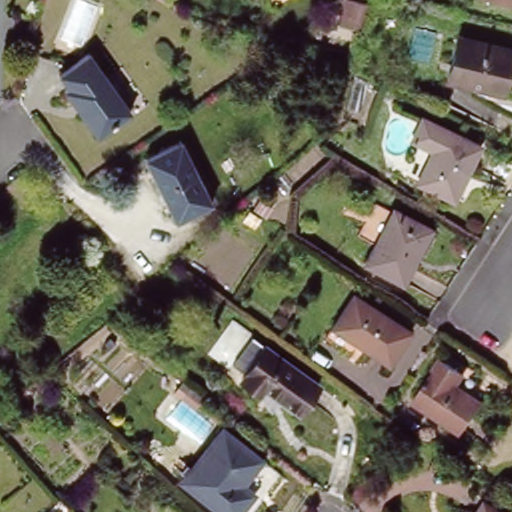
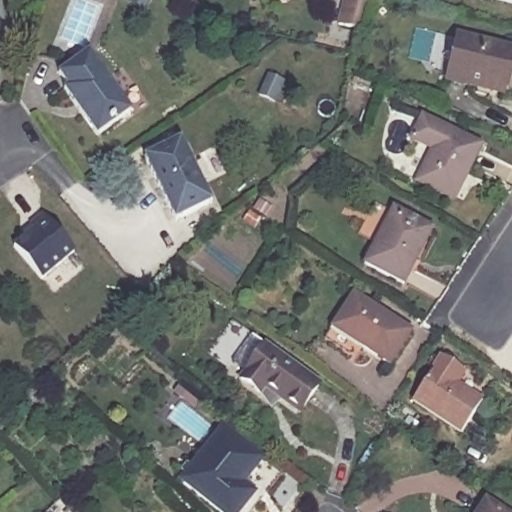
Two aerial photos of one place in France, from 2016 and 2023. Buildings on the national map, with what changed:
unchanged [(477,0),(512,0),(512,8),(477,0)]
unchanged [(348,29),(341,27),(345,1),(354,2),(367,5),(361,32),(348,29)]
unchanged [(503,90),(448,77),(458,34),(512,48),(512,56),(503,90)]
unchanged [(130,105),(97,130),(63,85),(67,82),(58,69),(87,47),(130,105)]
unchanged [(478,151),(454,200),(418,182),(433,153),(413,144),(423,126),(478,151)]
unchanged [(179,135),(212,196),(177,214),(144,154),(179,135)]
unchanged [(430,230),(418,251),(424,252),(404,288),(364,265),(392,211),(430,230)]
new [(13,246),(33,228),(28,224),(41,214),(75,251),(42,281),(13,246)]
unchanged [(408,335),(394,360),(368,343),(360,352),(330,333),(352,300),(408,335)]
unchanged [(321,383),(301,418),(266,396),(260,401),(241,388),(249,375),(230,363),(250,336),(321,383)]
unchanged [(482,403),(462,433),(412,403),(439,362),(454,371),(461,375),(458,381),(456,387),(482,403)]
unchanged [(246,512),(213,512),(174,482),(217,427),(276,473),(246,512)]
unchanged [(483,512),(489,503),(502,512),(483,512)]

